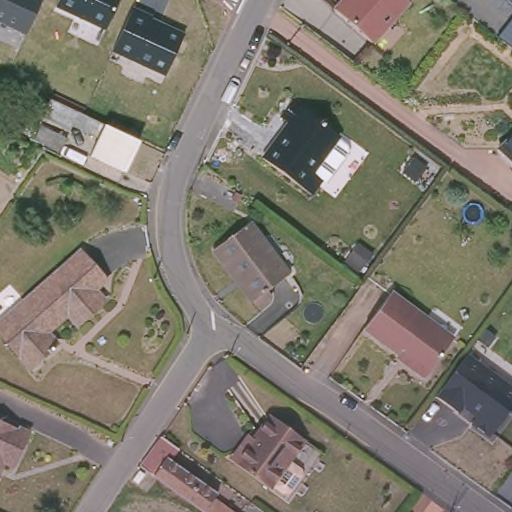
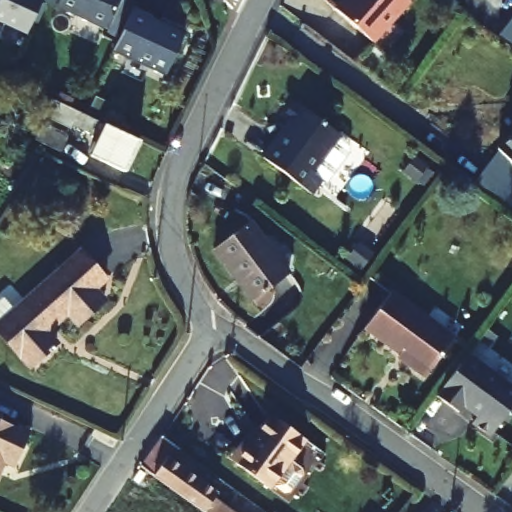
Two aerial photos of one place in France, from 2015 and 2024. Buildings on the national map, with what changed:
unchanged [(0,22),(0,0),(38,0),(21,34),(0,22)]
unchanged [(55,0),(111,0),(99,28),(51,8),(55,0)]
unchanged [(351,0),(352,1),(353,0),(403,0),(410,5),(376,49),(336,18),(350,0),(351,0)]
unchanged [(108,54),(132,5),(181,26),(161,76),(108,54)]
unchanged [(76,111),(137,141),(123,172),(91,156),(98,139),(72,126),(70,131),(42,117),(50,100),(76,111)]
unchanged [(335,141),(312,173),(321,180),(311,195),(262,158),(272,144),(277,146),(292,125),(282,118),(290,107),(335,141)]
unchanged [(67,138),(60,153),(35,141),(42,126),(67,138)]
unchanged [(512,136),(512,166),(497,151),(512,136)]
unchanged [(290,274),(252,301),(215,248),(252,222),(290,274)]
unchanged [(91,282),(103,296),(76,319),(66,307),(44,326),(56,339),(30,362),(0,330),(0,319),(23,298),(80,247),(102,272),(91,282)]
unchanged [(401,360),(360,328),(386,294),(446,343),(419,376),(416,379),(397,365),(399,362),(401,360)]
unchanged [(495,378),(494,379),(512,393),(512,415),(509,419),(507,418),(500,426),(490,440),(472,426),(477,420),(462,409),(458,416),(436,399),(446,385),(467,356),(495,378)]
unchanged [(21,466),(10,461),(0,480),(0,417),(36,433),(21,466)]
unchanged [(306,442),(270,491),(234,466),(271,417),(306,442)]
unchanged [(151,474),(171,445),(184,454),(177,466),(225,500),(222,507),(230,512),(205,512),(151,474)]

